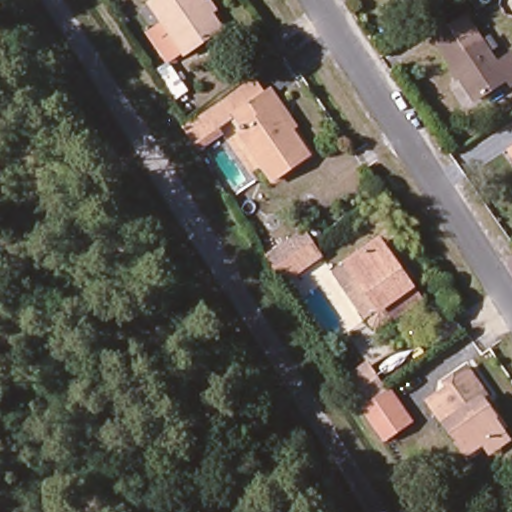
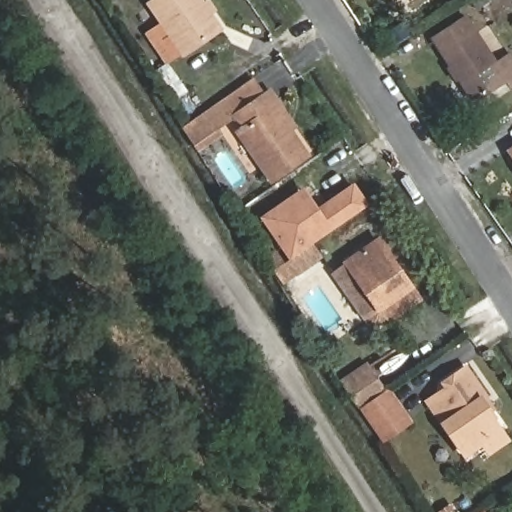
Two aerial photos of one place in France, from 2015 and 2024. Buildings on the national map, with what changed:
unchanged [(162,24),(149,4),(155,0),(200,0),(220,29),(183,54),(168,65),(147,35),(162,24)]
unchanged [(496,64),(509,56),(512,60),(512,86),(508,88),(503,81),(473,100),(433,39),(466,18),(496,64)]
unchanged [(219,132),(221,137),(196,155),(181,133),(182,132),(252,84),(263,100),(270,96),(278,110),(275,112),(290,135),(307,160),(271,185),(239,137),(243,135),(235,121),(219,132)]
unchanged [(512,156),(509,151),(512,149),(512,156)]
new [(307,223),(355,190),(366,207),(292,258),(266,220),(293,202),(307,223)]
new [(320,215),(307,223),(293,202),(305,194),(320,215)]
unchanged [(371,245),(390,272),(396,268),(418,300),(376,328),(370,327),(331,271),(371,245)]
unchanged [(382,440),(376,430),(361,407),(360,408),(343,382),(370,365),(387,389),(403,411),(410,421),(382,440)]
unchanged [(489,454),(481,444),(465,456),(427,402),(446,388),(443,383),(465,367),(485,395),(478,400),(500,431),(507,440),(489,454)]

